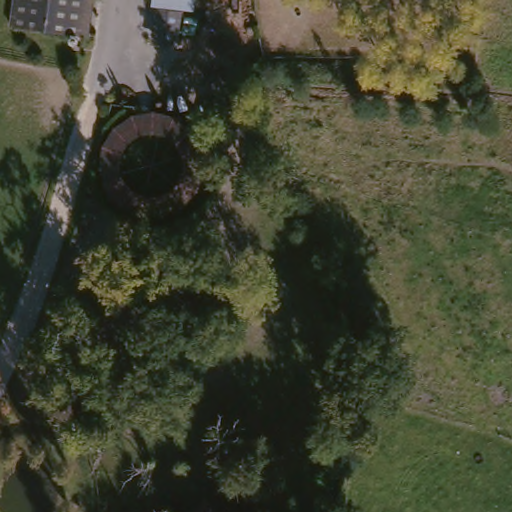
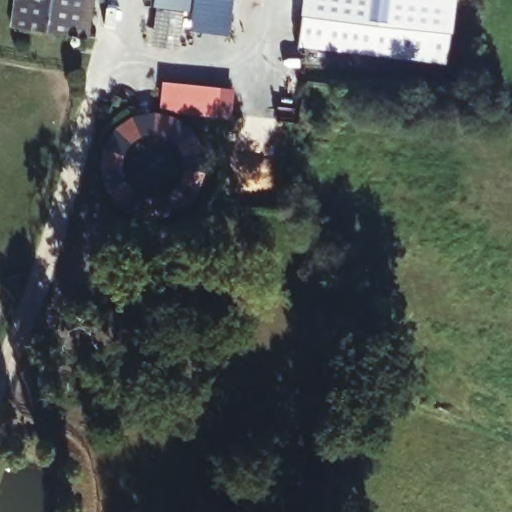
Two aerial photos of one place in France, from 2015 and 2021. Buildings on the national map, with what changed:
unchanged [(20,27),(22,0),(94,0),(93,11),(91,34),(86,34),(20,27)]
new [(149,45),(155,8),(152,7),(153,0),(195,0),(192,20),(204,22),(199,52),(149,45)]
new [(450,34),(446,65),(298,47),(302,15),(304,0),(454,0),(450,34)]
new [(235,89),(232,121),(160,112),(161,81),(235,89)]

